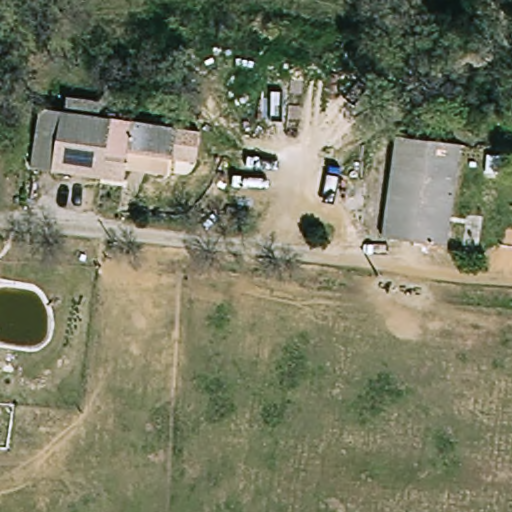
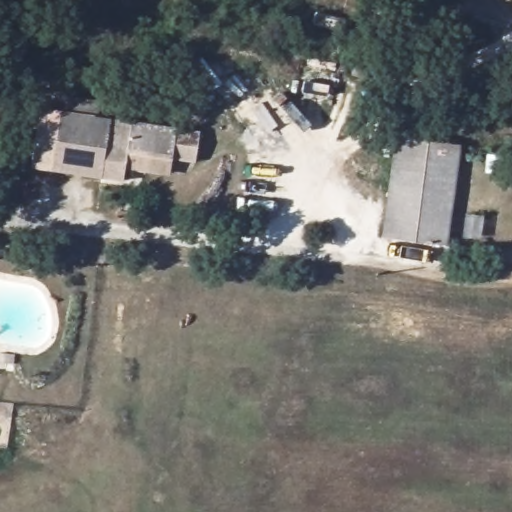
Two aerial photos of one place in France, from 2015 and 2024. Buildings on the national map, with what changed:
unchanged [(61,90),(111,98),(108,116),(59,109),(61,90)]
unchanged [(178,130),(173,157),(132,150),(126,182),(32,166),(43,107),(178,130)]
unchanged [(443,247),(384,237),(402,134),(461,144),(443,247)]

